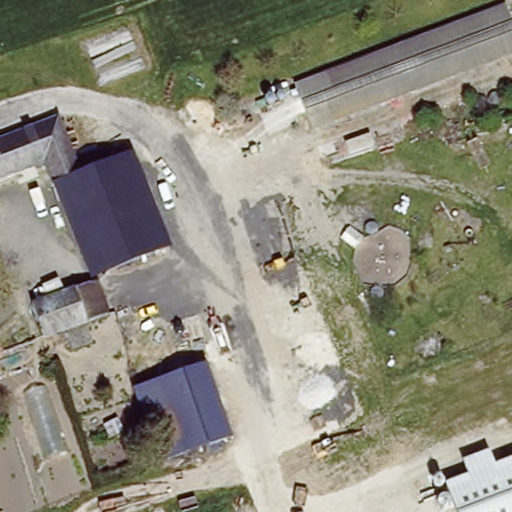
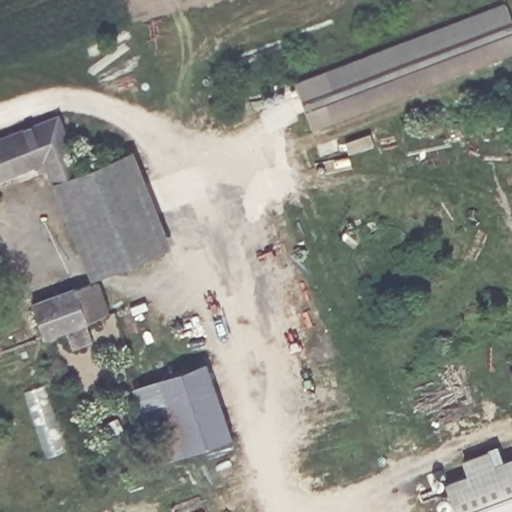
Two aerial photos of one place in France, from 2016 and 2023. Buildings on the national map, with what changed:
unchanged [(311,139),(288,84),(503,4),(512,25),(512,56),(311,139)]
unchanged [(85,172),(58,184),(48,158),(0,178),(0,142),(64,115),(85,172)]
unchanged [(58,184),(85,172),(136,150),(173,242),(98,272),(95,275),(87,254),(75,259),(65,234),(60,237),(53,219),(58,217),(48,194),(61,189),(58,184)]
unchanged [(78,344),(70,325),(54,332),(50,334),(38,304),(100,279),(113,309),(89,318),(97,337),(78,344)]
unchanged [(228,437),(156,464),(130,392),(201,366),(228,437)]
unchanged [(444,485),(468,476),(462,461),(489,450),(494,466),(512,459),(512,512),(455,512),(444,485)]

